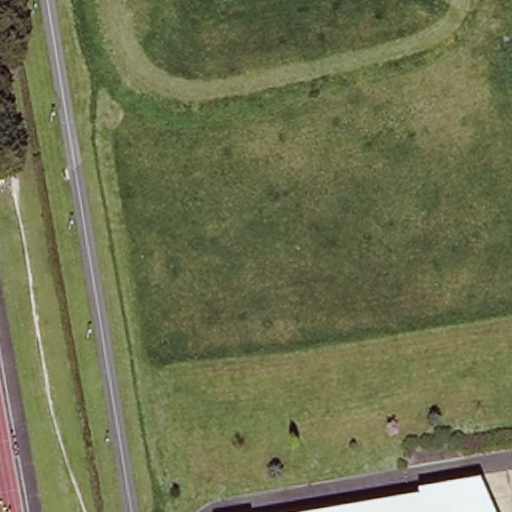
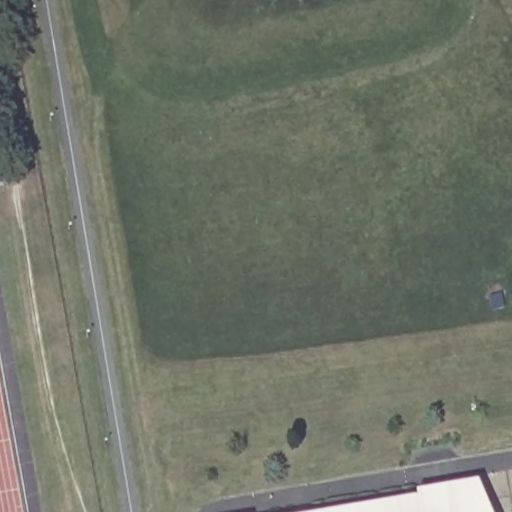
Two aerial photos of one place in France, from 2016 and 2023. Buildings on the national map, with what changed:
unchanged [(421,502),(480,491),(489,512),(408,512),(422,510),(421,502)]

